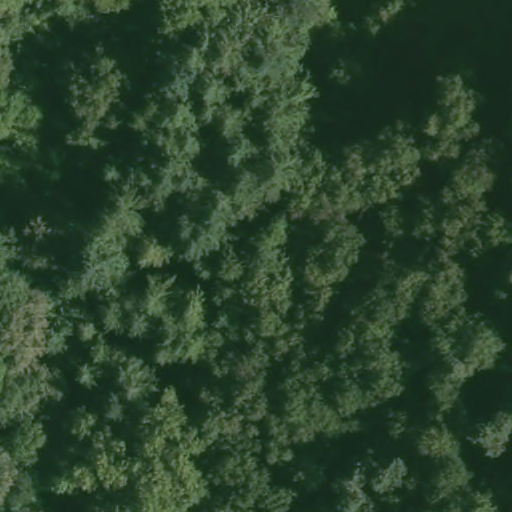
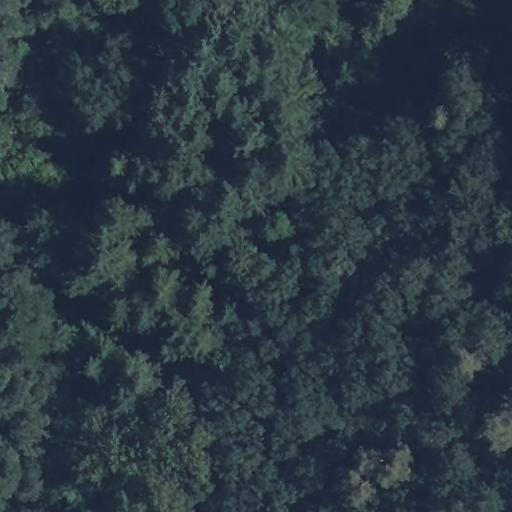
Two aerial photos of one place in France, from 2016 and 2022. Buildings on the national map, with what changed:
[]

